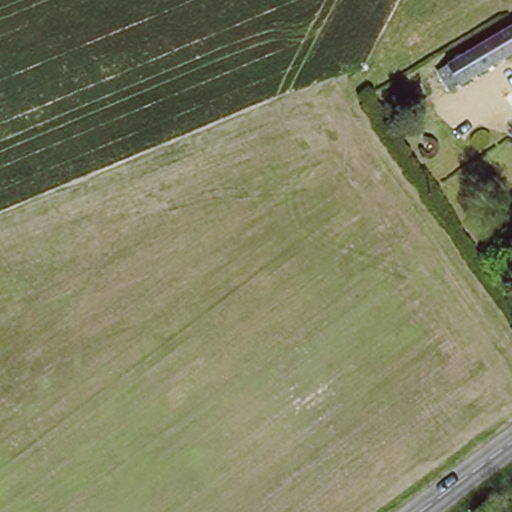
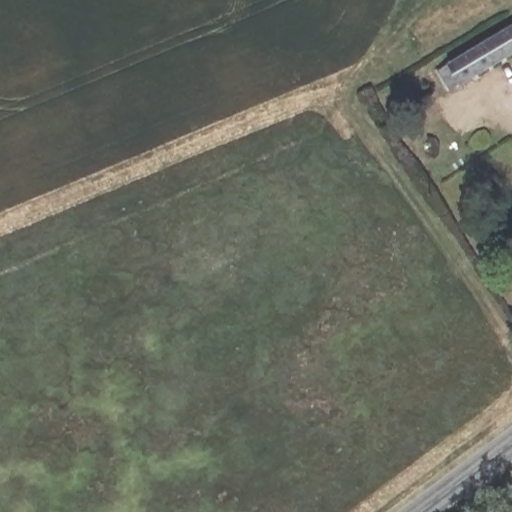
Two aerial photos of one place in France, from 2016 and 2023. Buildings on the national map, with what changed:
unchanged [(451,95),(445,85),(452,81),(447,72),(512,33),(512,60),(451,95)]

